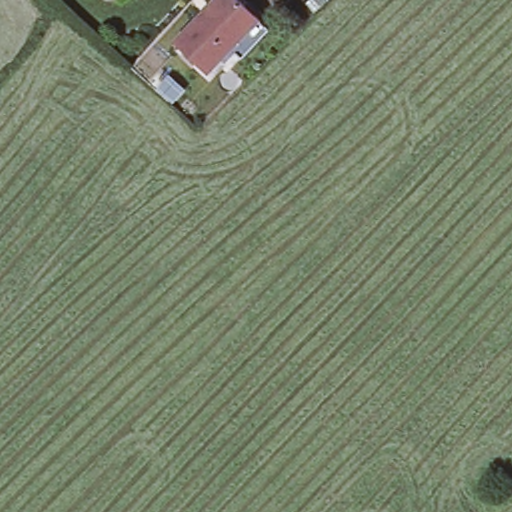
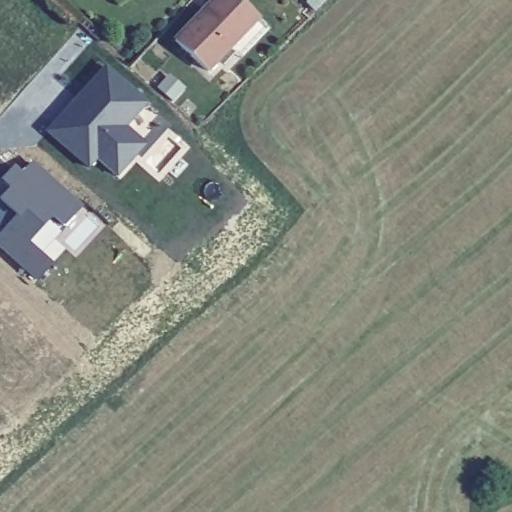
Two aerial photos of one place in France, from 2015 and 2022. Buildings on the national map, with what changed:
unchanged [(212,76),(179,45),(222,0),(237,0),(262,24),(235,53),(212,76)]
new [(152,102),(129,125),(150,144),(119,177),(99,160),(91,169),(46,131),(107,64),(152,102)]
new [(25,172),(35,162),(84,206),(64,228),(53,217),(31,240),(56,264),(39,282),(0,247),(0,196),(2,197),(11,189),(3,179),(16,163),(25,172)]

